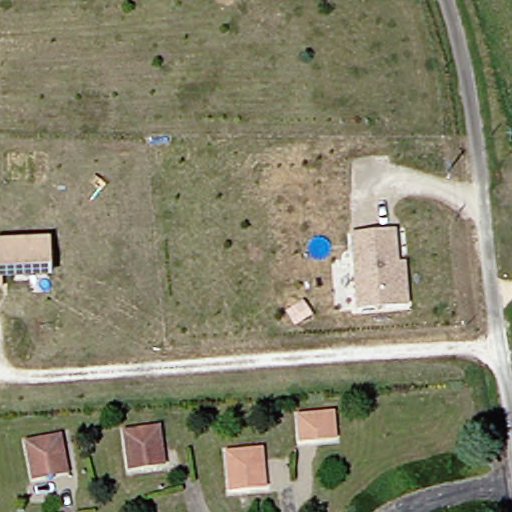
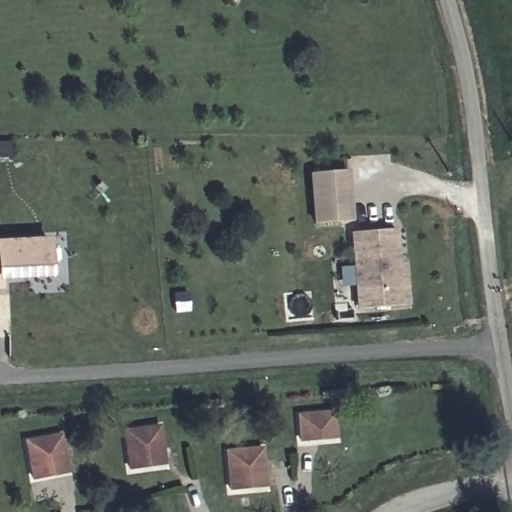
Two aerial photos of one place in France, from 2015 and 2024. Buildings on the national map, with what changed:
new [(349,169),(354,218),(320,222),(316,172),(349,169)]
unchanged [(405,287),(407,303),(359,307),(353,231),(394,228),(397,261),(403,260),(405,287)]
unchanged [(48,273),(0,276),(0,243),(45,239),(48,273)]
unchanged [(312,436),(293,438),(290,416),(325,412),(327,427),(328,434),(312,436)]
unchanged [(129,464),(114,466),(110,430),(146,427),(149,452),(150,462),(129,464)]
unchanged [(34,473),(23,474),(19,435),(53,432),(55,462),(56,471),(34,473)]
unchanged [(235,484),(214,486),(212,453),(249,450),(252,471),(253,483),(235,484)]

